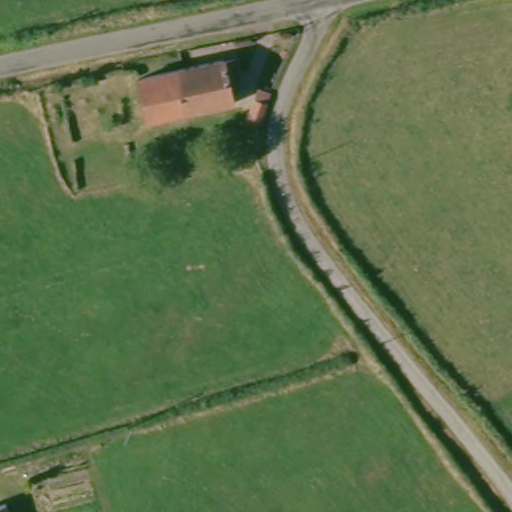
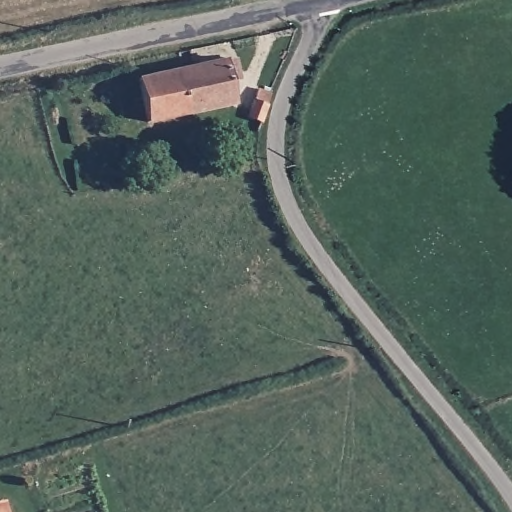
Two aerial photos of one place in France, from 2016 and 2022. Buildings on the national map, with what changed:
unchanged [(238,59),(244,83),(231,86),(236,104),(152,122),(142,80),(238,59)]
unchanged [(256,132),(242,127),(254,91),(270,96),(256,132)]
unchanged [(4,512),(0,512),(0,503),(1,503),(4,512)]

